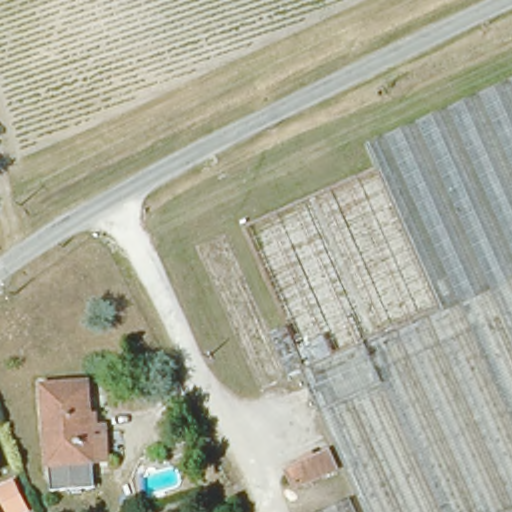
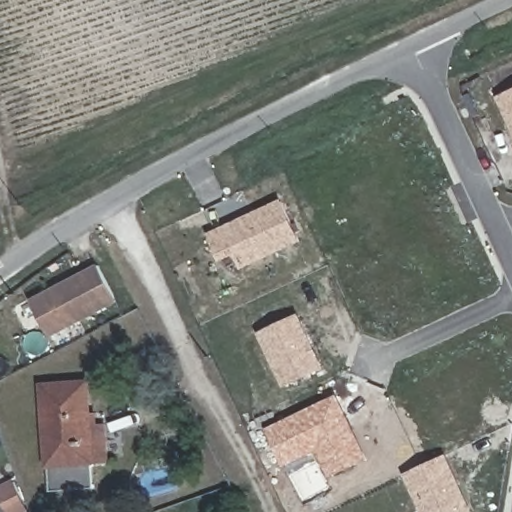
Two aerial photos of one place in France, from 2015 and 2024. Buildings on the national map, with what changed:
demolished [(375,512),(311,373),(267,393),(200,251),(227,239),(271,337),(291,328),(247,230),(376,170),(366,144),(512,75),(512,512),(375,512)]
new [(500,96),(512,91),(512,123),(500,96)]
new [(242,270),(236,256),(222,262),(209,233),(283,199),(303,241),(242,270)]
new [(50,338),(30,300),(98,263),(119,302),(50,338)]
new [(258,332),(300,313),(322,362),(282,382),(258,332)]
unchanged [(86,415),(102,414),(106,453),(91,455),(94,490),(51,493),(43,381),(82,378),(86,415)]
new [(340,399),(369,459),(331,477),(318,451),(285,467),(268,433),(340,399)]
new [(422,512),(405,476),(448,456),(474,512),(422,512)]
demolished [(342,477),(302,492),(295,472),(333,457),(342,477)]
demolished [(332,512),(357,501),(362,512),(332,512)]

